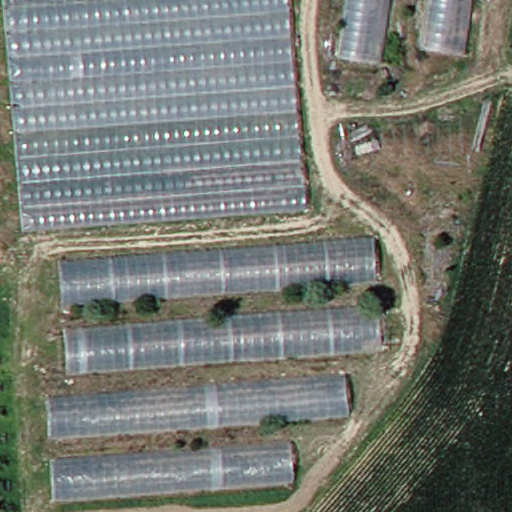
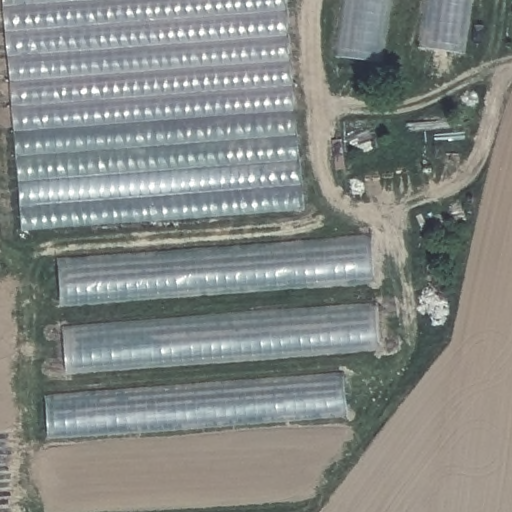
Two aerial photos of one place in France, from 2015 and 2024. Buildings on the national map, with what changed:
unchanged [(13,228),(0,79),(0,0),(277,0),(295,203),(13,228)]
unchanged [(331,58),(339,0),(385,0),(376,61),(331,58)]
unchanged [(414,49),(421,0),(466,0),(459,53),(414,49)]
unchanged [(375,233),(378,278),(62,302),(59,257),(375,233)]
unchanged [(382,347),(67,372),(63,326),(380,301),(382,347)]
unchanged [(351,412),(51,436),(47,396),(346,372),(351,412)]
demolished [(296,478),(58,500),(52,457),(292,439),(296,478)]

